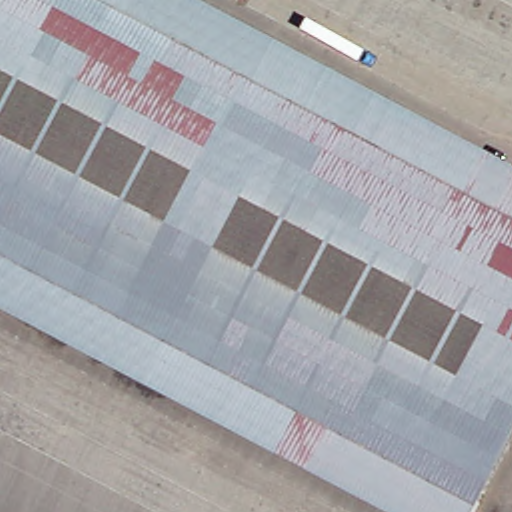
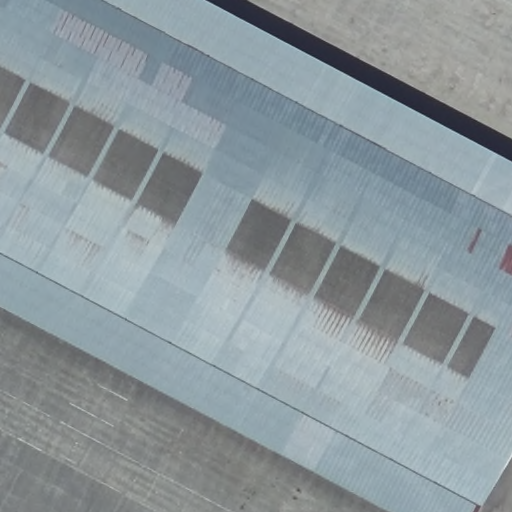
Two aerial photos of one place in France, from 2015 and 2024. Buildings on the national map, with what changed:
unchanged [(512,168),(512,425),(466,512),(380,512),(0,311),(0,0),(193,0),(512,168)]

